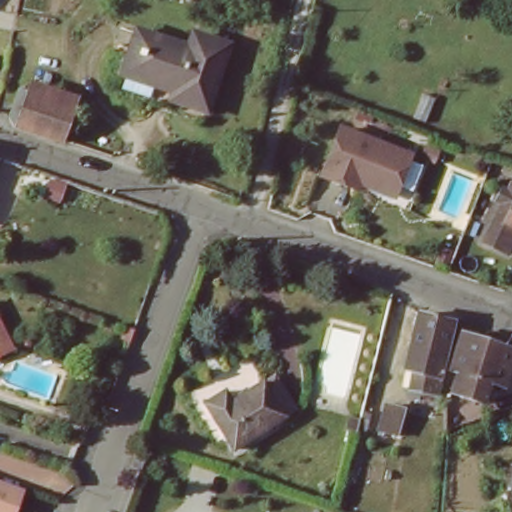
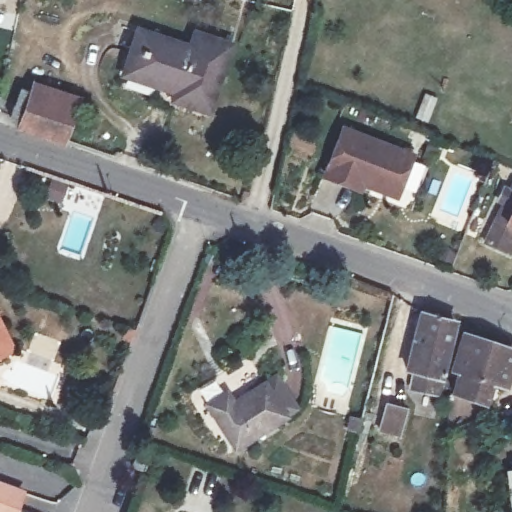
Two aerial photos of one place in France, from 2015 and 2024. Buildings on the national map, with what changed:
unchanged [(138,30),(191,48),(196,32),(232,45),(209,112),(175,100),(178,92),(123,72),(138,30)]
unchanged [(60,144),(12,128),(10,117),(20,90),(72,106),(60,144)]
unchanged [(409,155),(393,196),(358,182),(356,189),(320,176),(338,128),(409,155)]
unchanged [(507,254),(482,241),(493,217),(497,207),(502,197),(512,202),(512,244),(507,254)]
unchanged [(410,373),(402,371),(417,312),(420,312),(450,320),(433,397),(417,392),(407,390),(410,373)]
unchanged [(0,354),(0,327),(10,350),(0,354)]
unchanged [(512,350),(498,387),(485,383),(478,405),(448,395),(449,393),(455,373),(447,370),(460,332),(512,350)]
unchanged [(227,393),(234,404),(265,383),(287,417),(235,453),(205,408),(227,393)]
unchanged [(408,411),(401,434),(389,431),(378,427),(382,415),(385,405),(408,411)]
unchanged [(155,461),(150,476),(140,472),(145,458),(155,461)]
unchanged [(512,467),(512,503),(506,468),(512,467)]
unchanged [(14,512),(0,512),(0,482),(22,489),(14,512)]

